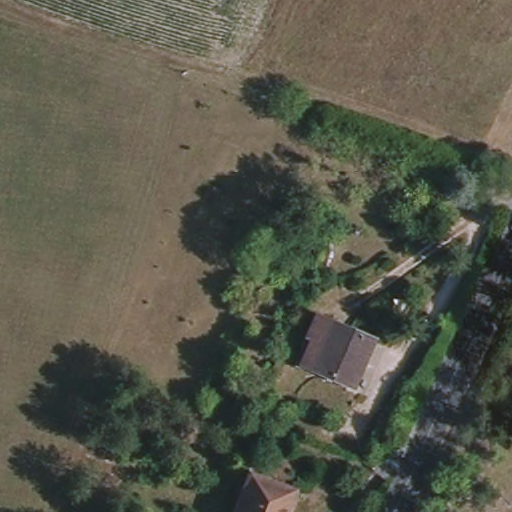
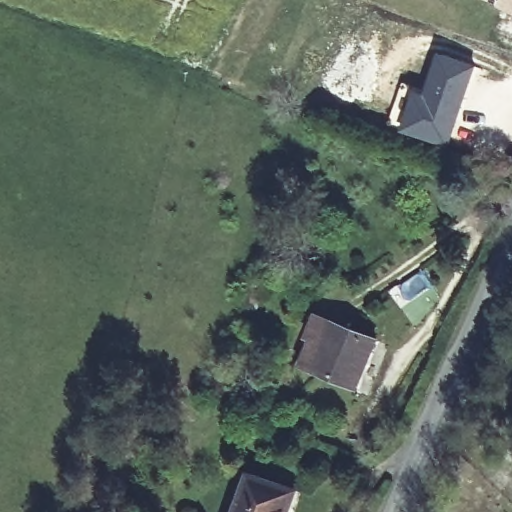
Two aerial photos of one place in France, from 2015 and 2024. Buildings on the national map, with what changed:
new [(500,0),(512,0),(512,11),(498,5),(500,0)]
new [(450,146),(403,130),(415,90),(426,94),(441,53),(478,66),(450,146)]
unchanged [(297,362),(317,317),(375,340),(354,388),(297,362)]
unchanged [(253,475),(302,494),(296,512),(240,512),(253,475)]

